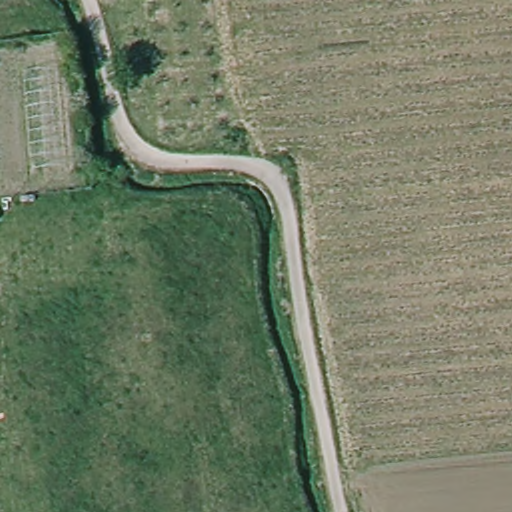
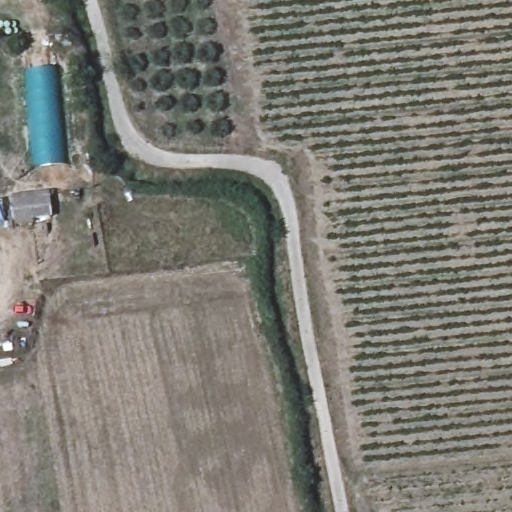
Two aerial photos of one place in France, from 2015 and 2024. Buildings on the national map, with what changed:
new [(57,67),(66,165),(33,169),(25,70),(57,67)]
new [(48,191),(52,217),(33,221),(33,224),(15,227),(11,197),(48,191)]

